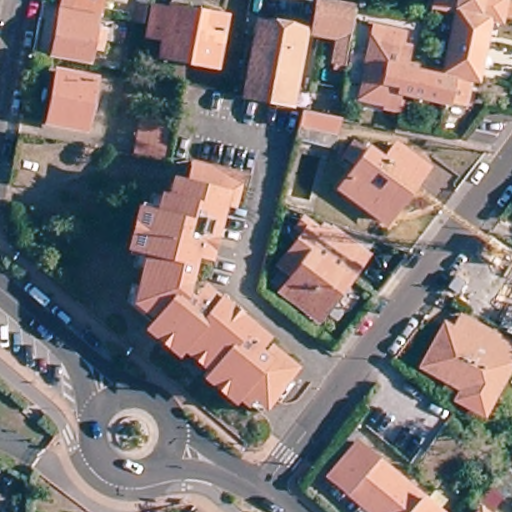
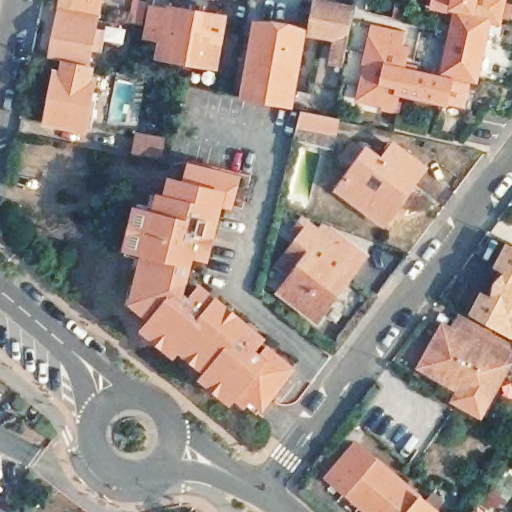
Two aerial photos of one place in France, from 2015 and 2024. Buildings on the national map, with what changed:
unchanged [(102,0),(98,21),(59,12),(61,0),(102,0)]
unchanged [(369,79),(371,70),(375,51),(377,40),(385,42),(405,47),(403,56),(407,57),(405,72),(416,75),(415,80),(437,86),(437,82),(441,83),(455,23),(446,21),(446,16),(445,16),(446,7),(428,2),(429,0),(499,0),(497,6),(505,7),(500,32),(490,31),(477,91),(457,87),(456,91),(451,90),(446,112),(398,102),(397,110),(404,112),(402,123),(385,119),(385,113),(368,109),(363,107),(365,98),(369,79)]
unchanged [(345,65),(333,62),(336,40),(311,34),(316,2),(355,7),(345,65)]
unchanged [(134,27),(137,10),(150,12),(146,30),(134,27)]
unchanged [(98,21),(93,44),(100,46),(99,57),(90,55),(87,67),(50,58),(59,12),(98,21)]
unchanged [(221,74),(165,62),(167,47),(151,42),(156,14),(171,17),(174,13),(231,24),(221,74)]
unchanged [(292,98),(306,102),(305,110),(240,95),(256,22),(305,32),(292,98)]
unchanged [(84,135),(45,127),(55,78),(94,86),(84,135)]
unchanged [(300,112),(337,120),(334,135),(297,127),(300,112)]
unchanged [(159,156),(134,151),(140,121),(165,125),(159,156)]
unchanged [(364,159),(378,170),(390,156),(421,180),(381,235),(333,197),(364,159)]
unchanged [(177,349),(175,352),(146,328),(150,325),(152,321),(141,312),(140,313),(126,302),(130,287),(136,288),(140,272),(131,269),(136,252),(127,249),(132,230),(137,212),(145,214),(150,196),(160,198),(165,200),(170,182),(180,184),(185,186),(190,169),(199,171),(237,180),(231,207),(210,202),(190,283),(197,285),(278,351),(275,355),(295,371),(257,416),(235,397),(233,401),(203,376),(205,372),(177,349)]
unchanged [(318,325),(281,296),(291,281),(278,271),(302,237),(296,233),(303,225),(320,237),(325,232),(365,263),(318,325)]
new [(482,288),(492,295),(505,271),(495,267),(506,244),(512,247),(512,338),(470,313),(482,288)]
unchanged [(512,358),(486,405),(430,372),(420,367),(443,327),(452,332),(460,319),(512,349),(512,358)]
unchanged [(425,512),(365,512),(345,495),(342,498),(324,482),(353,450),(425,512)]
unchanged [(512,467),(511,467),(512,465),(512,467)]
unchanged [(471,507),(476,502),(486,512),(476,512),(471,507)]
unchanged [(190,505),(199,512),(185,512),(190,505)]

